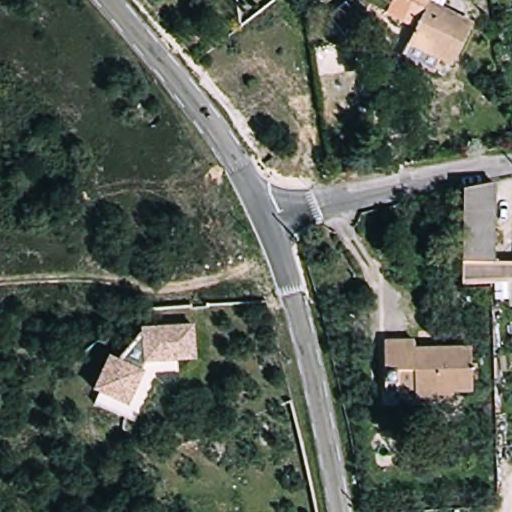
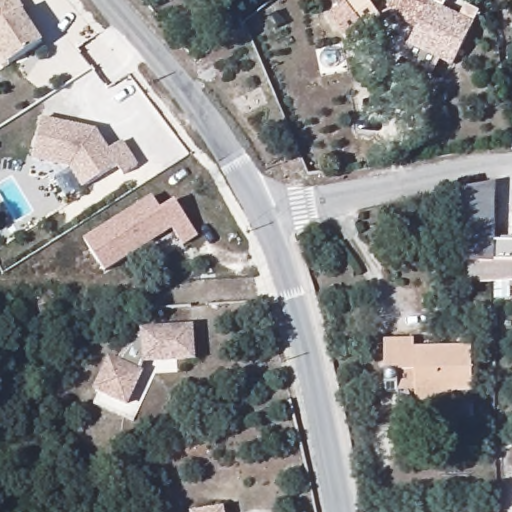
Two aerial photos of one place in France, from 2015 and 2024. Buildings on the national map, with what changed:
new [(23,8),(21,9),(42,41),(9,64),(0,51),(0,0),(17,0),(23,8)]
unchanged [(370,2),(381,15),(373,21),(350,41),(330,17),(350,0),(367,0),(370,2)]
unchanged [(429,74),(404,64),(417,33),(386,20),(395,0),(430,0),(427,8),(470,26),(456,63),(448,83),(429,74)]
new [(96,130),(110,149),(122,141),(137,166),(123,175),(116,166),(82,189),(68,169),(31,161),(40,118),(96,130)]
unchanged [(497,189),(494,262),(494,266),(463,265),(465,196),(497,189)]
new [(156,199),(163,212),(178,203),(200,239),(185,249),(174,232),(106,274),(86,242),(156,199)]
unchanged [(462,289),(463,265),(494,266),(494,262),(512,262),(512,286),(489,287),(462,289)]
unchanged [(195,359),(153,362),(144,368),(132,398),(108,388),(102,385),(114,356),(123,359),(149,341),(149,337),(195,331),(195,359)]
unchanged [(412,390),(411,368),(394,367),(394,391),(380,391),(380,342),(412,342),(412,348),(472,347),(472,388),(452,389),(412,390)]
unchanged [(451,404),(394,406),(394,391),(394,367),(411,368),(412,390),(452,389),(451,404)]
new [(225,512),(190,512),(190,511),(224,505),(225,512)]

